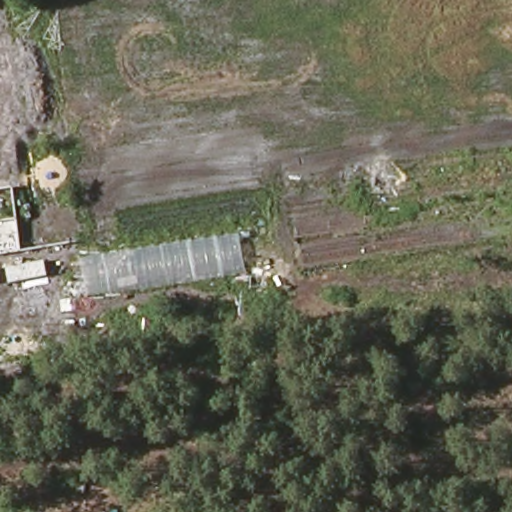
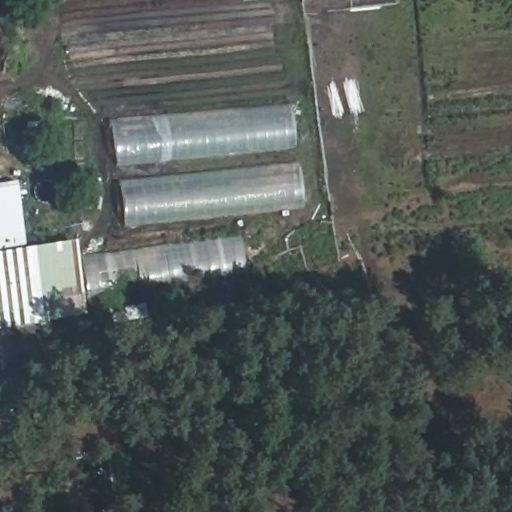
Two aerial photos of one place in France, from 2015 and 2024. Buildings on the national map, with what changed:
new [(291,103),(295,149),(116,164),(109,119),(291,103)]
new [(128,227),(122,182),(302,164),(306,207),(128,227)]
new [(0,184),(16,182),(25,252),(0,255),(0,184)]
unchanged [(86,296),(81,258),(238,234),(245,272),(86,296)]
new [(25,249),(73,241),(84,317),(0,330),(0,255),(25,252),(25,249)]

